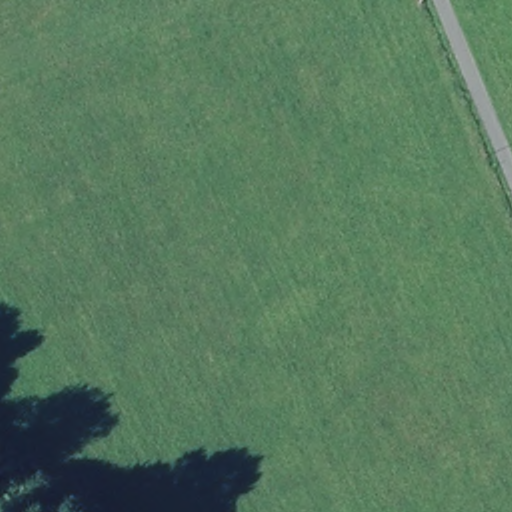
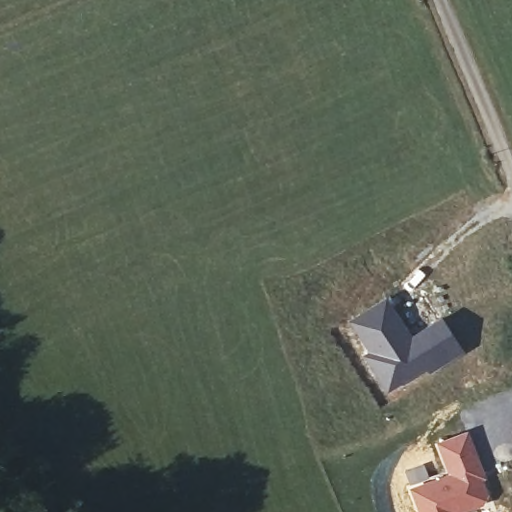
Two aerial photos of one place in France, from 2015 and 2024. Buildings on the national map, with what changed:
new [(402,324),(398,327),(407,341),(441,319),(460,349),(429,369),(427,366),(387,388),(365,356),(370,354),(349,323),(384,299),(402,324)]
new [(430,478),(446,471),(434,443),(467,429),(486,478),(483,479),(488,497),(467,512),(417,512),(405,472),(424,465),(430,478)]

